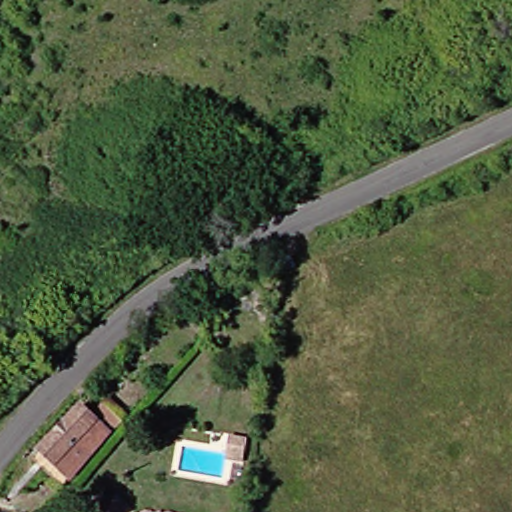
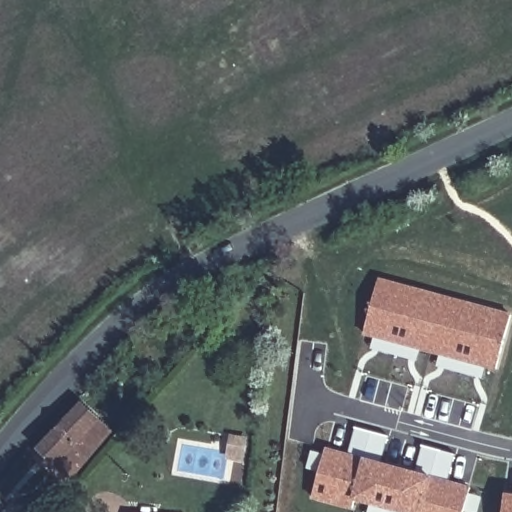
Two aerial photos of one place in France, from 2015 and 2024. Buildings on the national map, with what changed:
new [(378,277),(511,313),(496,370),(482,368),(480,377),(445,368),(448,357),(420,350),(417,360),(371,348),(374,337),(364,335),(378,277)]
unchanged [(264,290),(273,294),(266,307),(258,302),(264,290)]
unchanged [(106,370),(113,378),(99,392),(91,385),(106,370)]
unchanged [(105,399),(121,415),(111,427),(94,411),(105,399)]
unchanged [(104,432),(66,478),(35,450),(76,406),(104,432)]
new [(353,455),(359,435),(377,440),(372,460),(425,474),(430,453),(447,458),(441,478),(471,486),(469,494),(483,497),(479,512),(474,512),(465,510),(464,512),(377,512),(378,508),(352,501),(351,510),(313,499),(326,447),(353,455)]
new [(504,512),(506,493),(512,494),(512,512),(504,512)]

